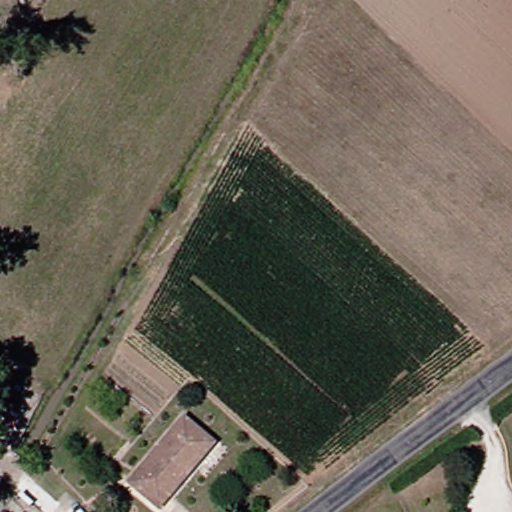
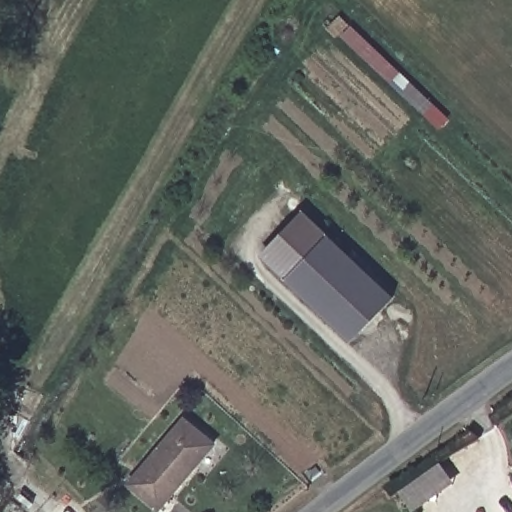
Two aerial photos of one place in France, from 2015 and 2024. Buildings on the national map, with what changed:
new [(259,255),(302,211),(393,299),(351,342),(259,255)]
unchanged [(129,480),(185,419),(206,437),(216,444),(195,469),(160,508),(129,480)]
new [(455,482),(414,512),(410,512),(398,494),(442,463),(455,482)]

